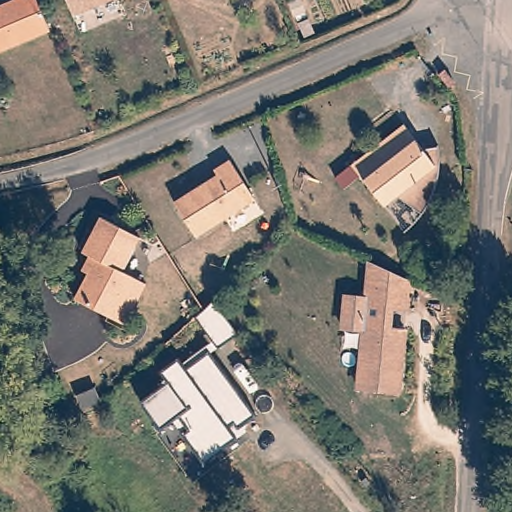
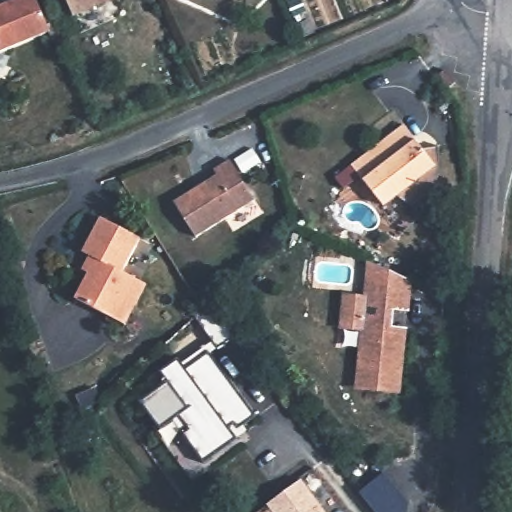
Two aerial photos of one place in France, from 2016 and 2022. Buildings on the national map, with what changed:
unchanged [(26,0),(34,0),(50,36),(0,57),(0,11),(26,0)]
unchanged [(64,0),(121,0),(73,20),(64,0)]
unchanged [(359,175),(343,188),(334,176),(402,123),(423,150),(437,148),(437,149),(437,150),(438,155),(438,160),(439,160),(439,165),(438,166),(438,167),(438,169),(438,171),(438,172),(438,173),(437,177),(437,180),(436,182),(435,187),(434,189),(433,192),(432,194),(431,196),(431,197),(431,198),(430,198),(430,200),(428,202),(427,204),(427,205),(426,206),(424,209),(424,210),(423,210),(421,212),(421,214),(420,215),(417,217),(416,219),(415,220),(413,222),(411,224),(407,226),(405,228),(402,230),(382,205),(359,175)]
unchanged [(217,180),(214,176),(229,165),(255,205),(198,244),(175,210),(217,180)]
unchanged [(139,240),(120,273),(144,286),(132,308),(121,302),(111,320),(72,300),(94,260),(81,253),(100,219),(139,240)]
unchanged [(366,336),(345,333),(349,301),(370,304),(373,267),(394,277),(413,286),(409,317),(396,316),(394,332),(408,334),(401,398),(370,395),(360,393),(366,336)]
unchanged [(198,308),(208,298),(234,331),(214,347),(211,342),(191,315),(198,308)]
unchanged [(244,424),(248,431),(204,462),(172,419),(161,428),(141,401),(170,381),(163,371),(179,361),(186,368),(207,353),(257,416),(244,424)]
new [(385,473),(408,504),(407,512),(374,512),(359,492),(385,473)]
new [(302,480),(325,512),(270,512),(266,506),(302,480)]

